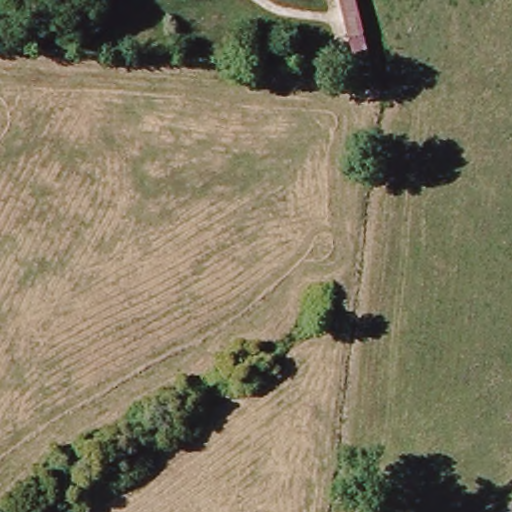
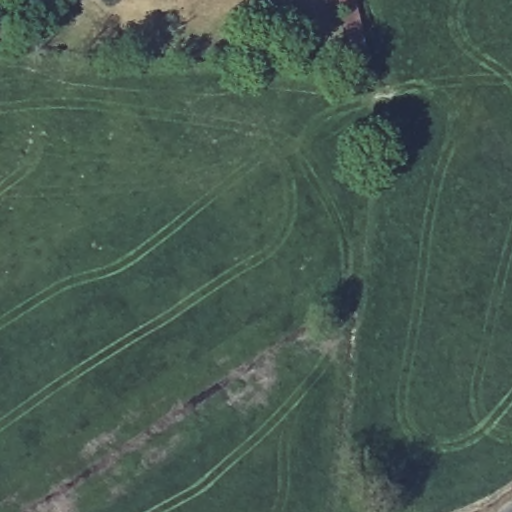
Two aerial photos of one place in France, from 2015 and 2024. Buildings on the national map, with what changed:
unchanged [(351,56),(337,0),(355,0),(367,51),(351,56)]

